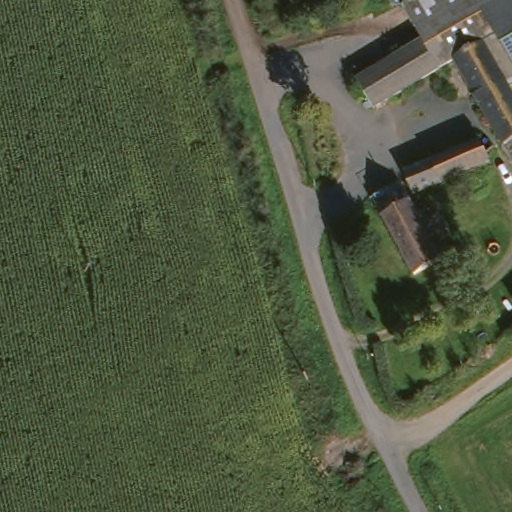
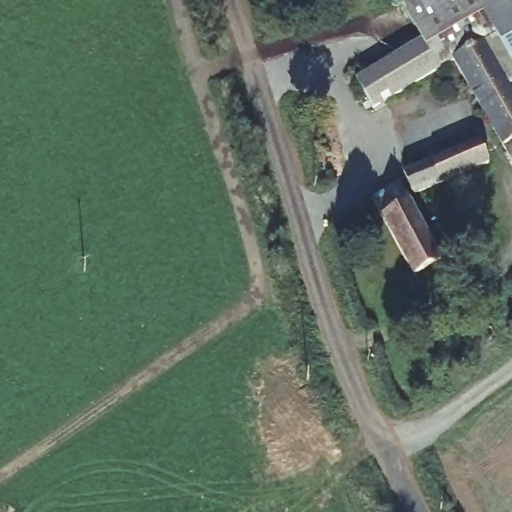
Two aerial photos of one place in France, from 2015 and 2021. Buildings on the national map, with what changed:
unchanged [(480,48),(450,63),(430,73),(365,104),(357,90),(350,75),(418,42),(402,14),(426,0),(512,0),(512,92),(508,94),(480,48)]
unchanged [(512,101),(512,144),(500,149),(450,63),(480,48),(508,94),(512,101)]
unchanged [(405,175),(475,144),(483,165),(470,170),(411,194),(405,175)]
unchanged [(512,144),(512,168),(500,149),(512,144)]
unchanged [(371,202),(398,188),(441,266),(414,281),(371,202)]
unchanged [(512,303),(511,302),(512,301),(512,303)]

